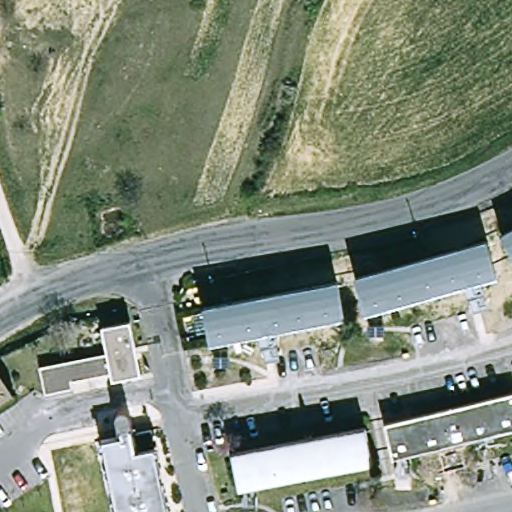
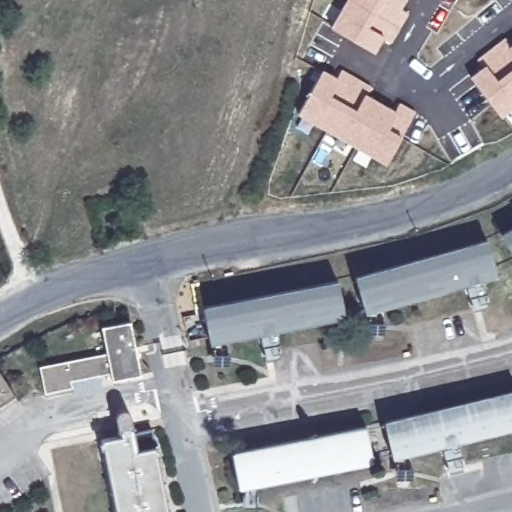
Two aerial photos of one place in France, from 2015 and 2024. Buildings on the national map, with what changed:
new [(401,8),(409,14),(391,43),(384,36),(375,54),(330,27),(346,0),(406,0),(401,8)]
new [(501,117),(470,76),(483,67),(477,59),(506,37),(512,44),(512,108),(501,117)]
new [(400,102),(416,111),(402,136),(386,164),(297,114),(322,70),(339,79),(343,71),(369,86),(365,94),(399,113),(395,110),(400,102)]
unchanged [(512,233),(512,248),(506,237),(512,233)]
unchanged [(491,243),(500,276),(370,312),(361,280),(491,243)]
unchanged [(340,283),(347,317),(215,343),(209,309),(340,283)]
unchanged [(106,326),(133,320),(147,375),(120,381),(118,375),(114,357),(113,352),(106,326)]
unchanged [(113,352),(114,357),(118,375),(76,385),(77,390),(51,396),(45,368),(113,352)]
unchanged [(0,405),(0,364),(19,393),(0,405)]
unchanged [(512,395),(512,431),(400,458),(392,424),(512,395)]
unchanged [(120,435),(117,416),(118,413),(121,410),(123,410),(127,409),(128,409),(133,411),(134,418),(137,431),(156,428),(173,512),(117,512),(103,439),(120,435)]
unchanged [(369,428),(375,462),(244,487),(238,453),(369,428)]

